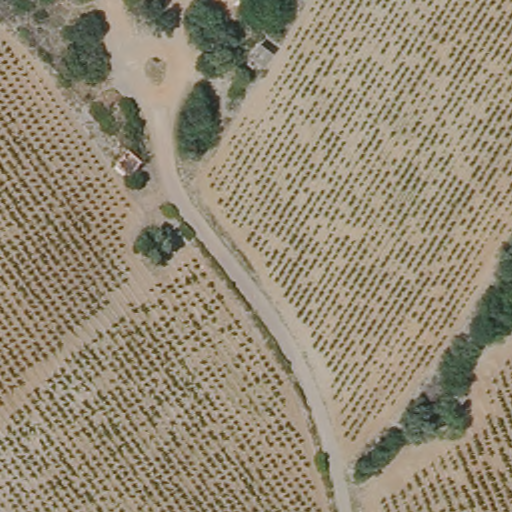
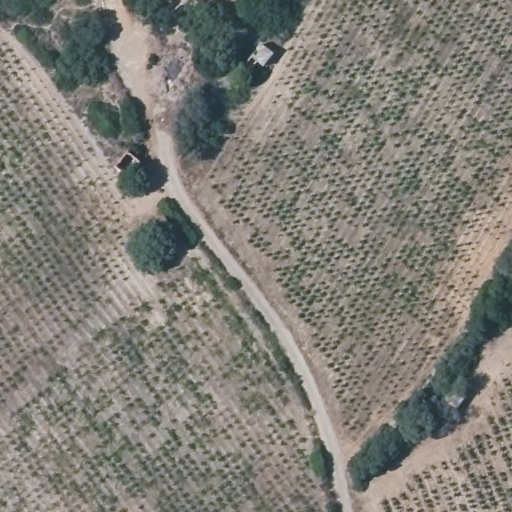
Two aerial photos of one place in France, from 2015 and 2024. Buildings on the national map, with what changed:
unchanged [(266,49),(282,58),(272,76),(256,66),(266,49)]
unchanged [(138,162),(128,183),(113,176),(123,155),(138,162)]
unchanged [(470,397),(457,417),(441,407),(455,387),(470,397)]

